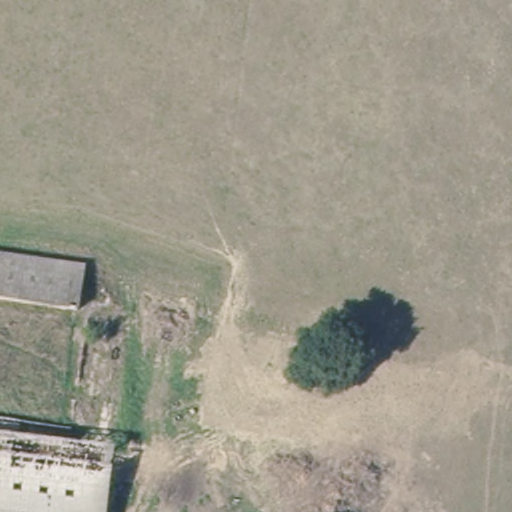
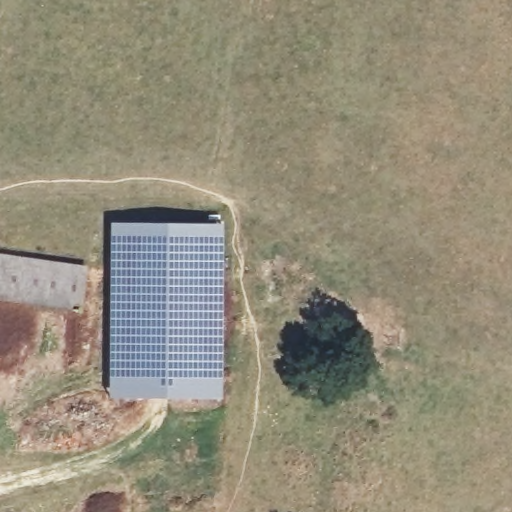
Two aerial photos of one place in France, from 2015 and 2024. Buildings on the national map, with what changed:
new [(110,225),(223,225),(220,401),(109,400),(110,225)]
unchanged [(90,263),(85,303),(0,293),(0,251),(90,263)]

